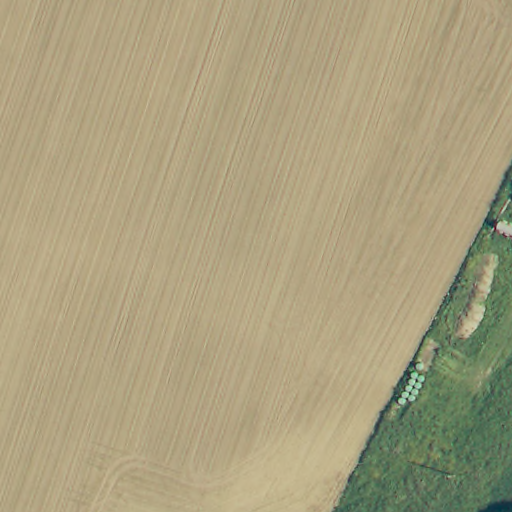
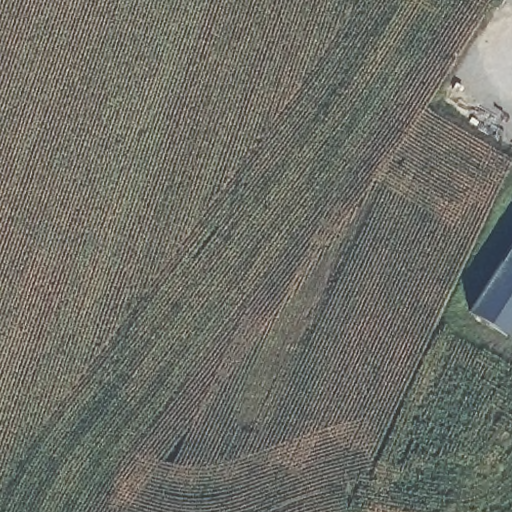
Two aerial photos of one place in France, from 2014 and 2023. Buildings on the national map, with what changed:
new [(467,311),(512,241),(512,328),(506,336),(467,311)]

